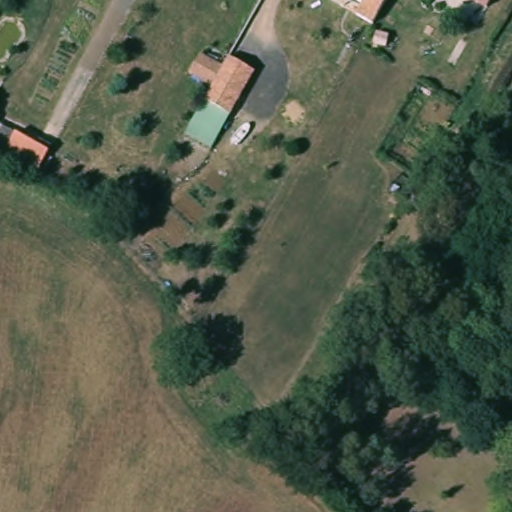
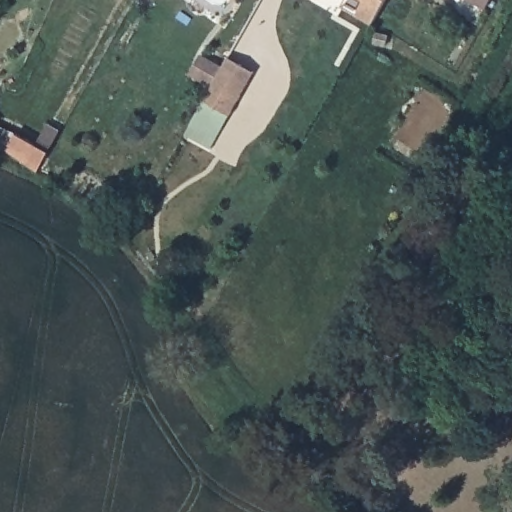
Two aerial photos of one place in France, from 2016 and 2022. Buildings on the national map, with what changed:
unchanged [(376,22),(359,12),(367,0),(389,0),(376,22)]
unchanged [(493,9),(478,0),(498,0),(493,9)]
unchanged [(184,132),(202,105),(214,85),(228,61),(255,77),(241,100),(230,121),(211,147),(184,132)]
unchanged [(53,146),(38,171),(6,155),(18,127),(53,146)]

